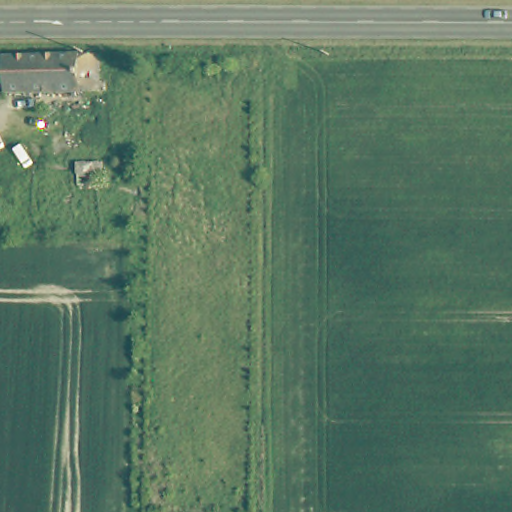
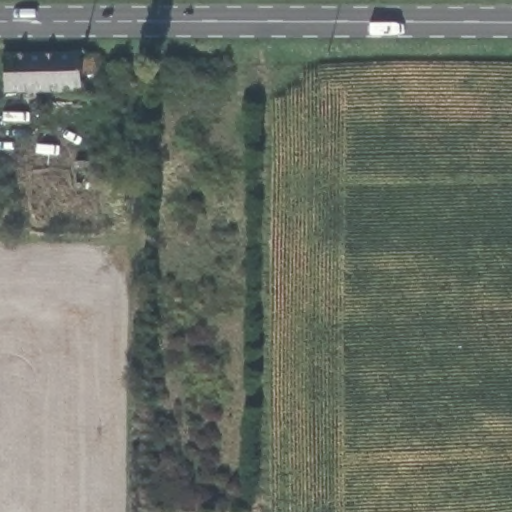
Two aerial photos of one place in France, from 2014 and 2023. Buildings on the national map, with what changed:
unchanged [(0,55),(75,53),(95,53),(96,90),(0,92),(0,55)]

